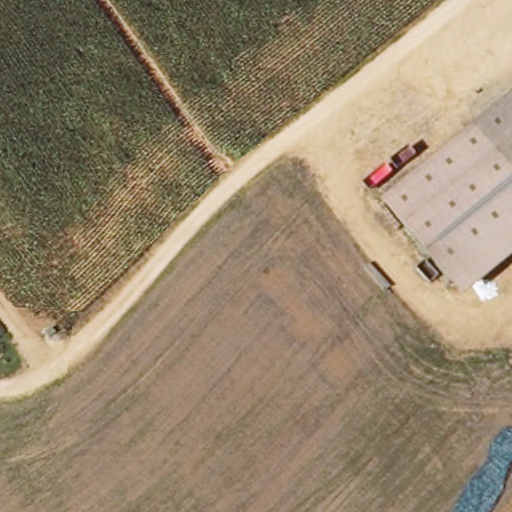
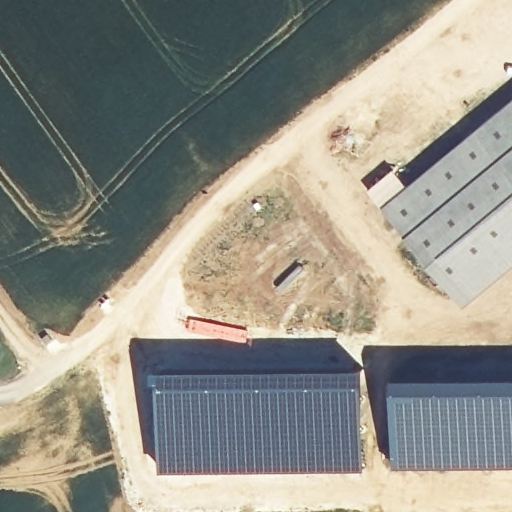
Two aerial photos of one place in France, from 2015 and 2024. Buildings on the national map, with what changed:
unchanged [(464,306),(383,206),(512,100),(512,267),(464,306)]
new [(365,366),(366,402),(365,470),(160,471),(159,365),(365,366)]
new [(512,375),(512,465),(396,465),(396,388),(397,375),(512,375)]

